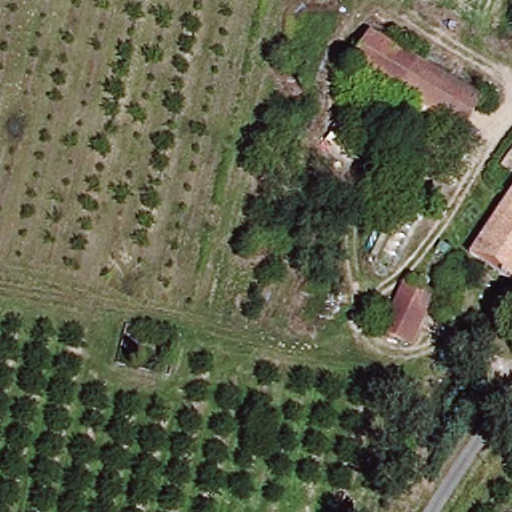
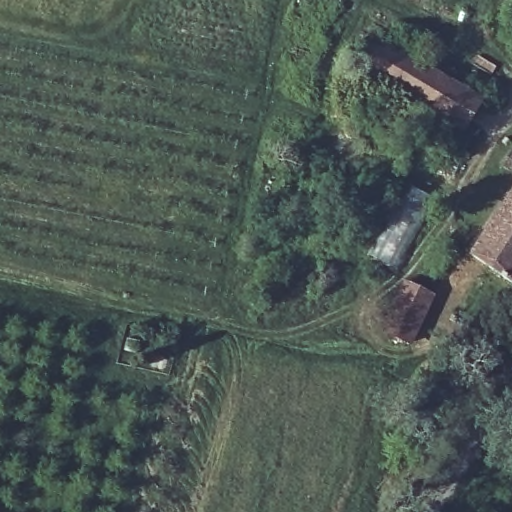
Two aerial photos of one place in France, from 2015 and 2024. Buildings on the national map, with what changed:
unchanged [(394,90),(352,64),(367,33),(413,60),(394,90)]
unchanged [(475,96),(455,130),(394,90),(413,60),(475,96)]
unchanged [(512,146),(512,167),(510,170),(498,163),(510,144),(512,146)]
unchanged [(512,197),(507,193),(512,186),(512,197)]
unchanged [(507,193),(512,197),(512,282),(471,254),(507,193)]
unchanged [(405,275),(433,289),(411,338),(380,325),(405,275)]

